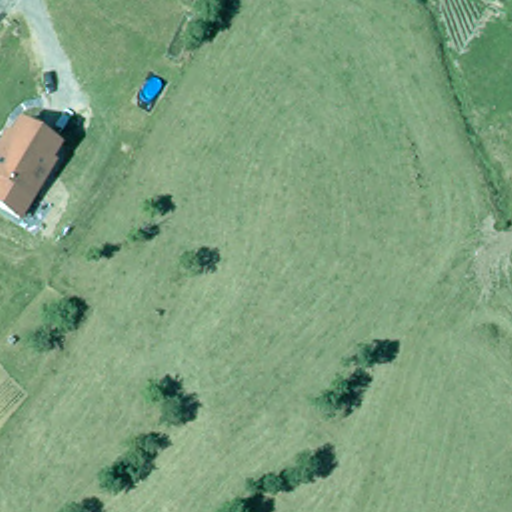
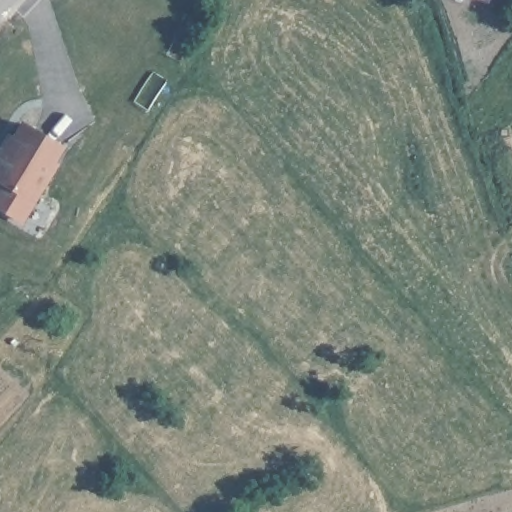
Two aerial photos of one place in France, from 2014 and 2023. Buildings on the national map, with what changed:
unchanged [(0,134),(10,119),(24,129),(45,141),(47,144),(38,159),(41,160),(30,178),(27,175),(15,194),(19,196),(6,217),(2,214),(0,213),(0,134)]

